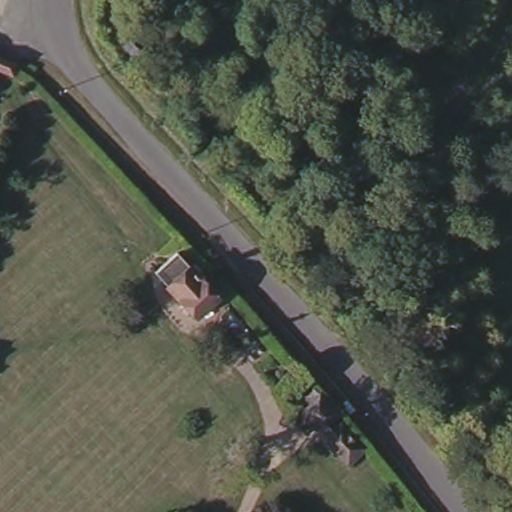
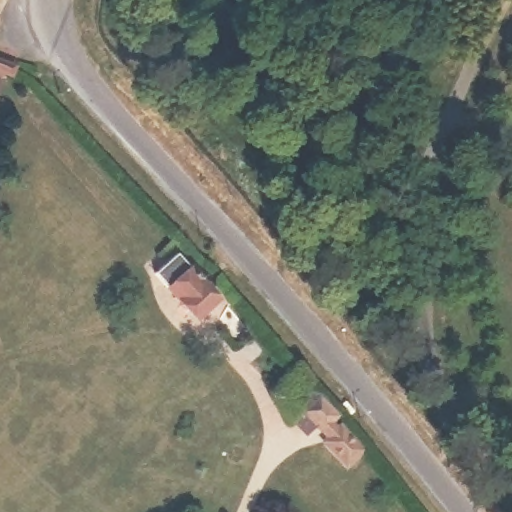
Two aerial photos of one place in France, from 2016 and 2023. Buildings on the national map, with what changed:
unchanged [(162,47),(155,55),(144,44),(151,38),(162,47)]
unchanged [(172,294),(195,269),(225,296),(201,321),(172,294)]
unchanged [(302,420),(307,412),(290,396),(282,388),(286,385),(280,376),(292,366),(314,389),(305,395),(313,405),(315,404),(336,428),(322,442),(302,420)]

